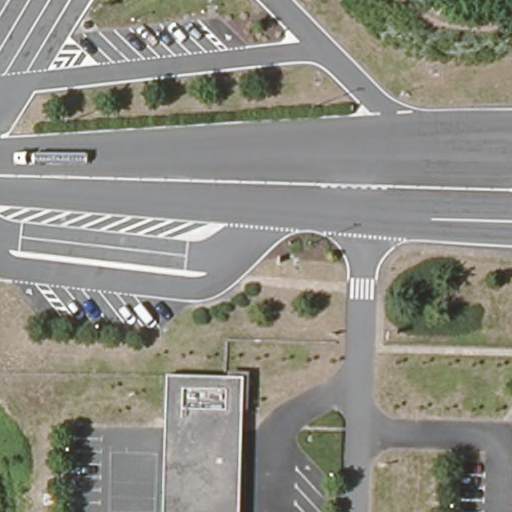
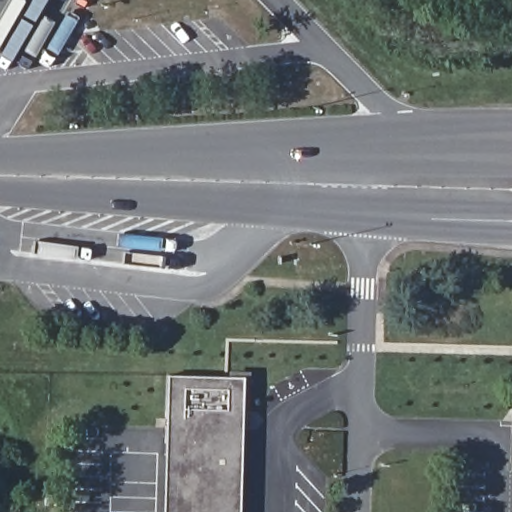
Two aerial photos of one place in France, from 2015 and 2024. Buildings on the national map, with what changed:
unchanged [(173,370),(246,373),(240,512),(169,512),(173,370)]

